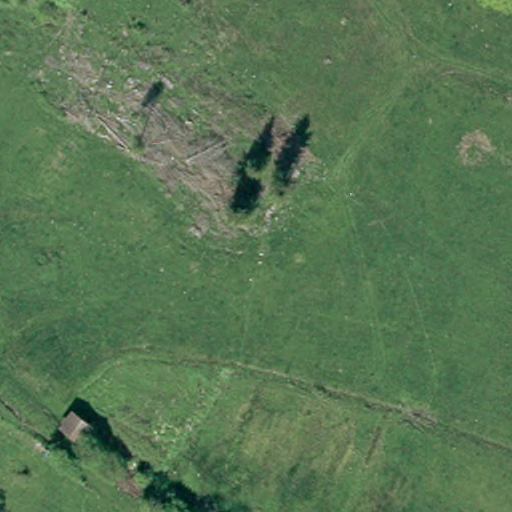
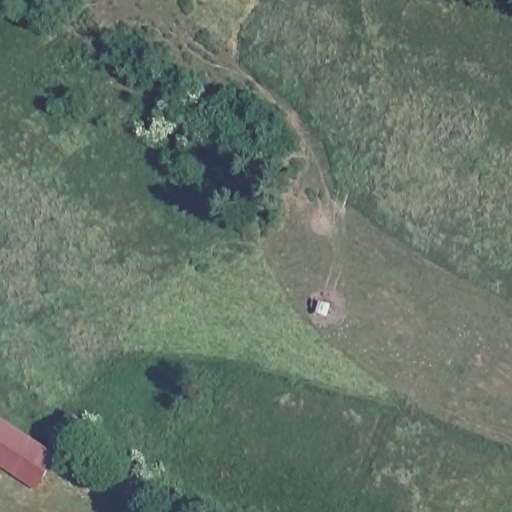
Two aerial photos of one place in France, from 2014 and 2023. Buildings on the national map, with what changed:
unchanged [(77,413),(98,432),(83,449),(63,430),(77,413)]
new [(61,453),(38,489),(0,464),(0,414),(61,453)]

